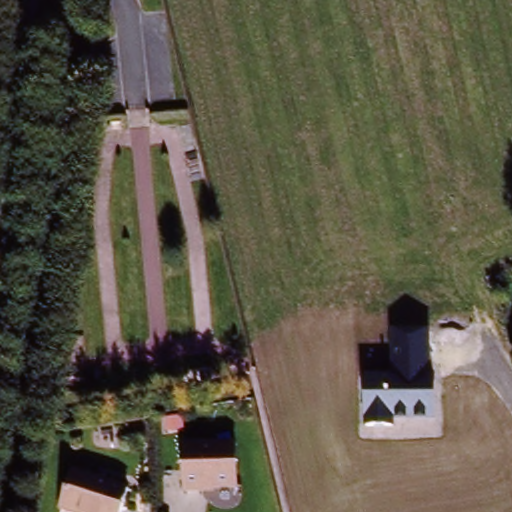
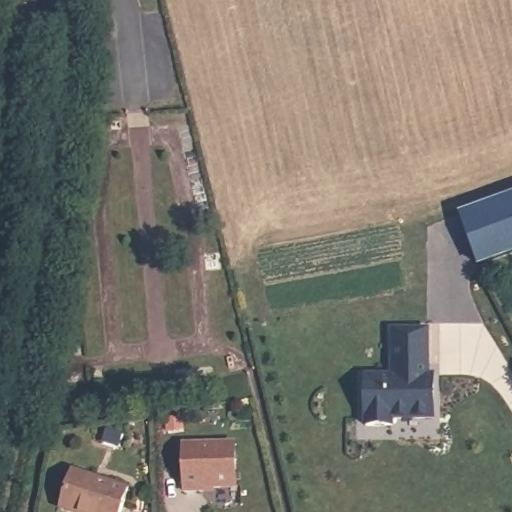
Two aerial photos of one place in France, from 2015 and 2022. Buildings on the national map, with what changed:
new [(512,258),(480,269),(459,214),(512,195),(512,258)]
unchanged [(393,374),(396,333),(432,334),(432,419),(395,417),(394,425),(365,425),(365,374),(393,374)]
unchanged [(234,447),(235,492),(200,492),(200,495),(182,496),(182,448),(234,447)]
unchanged [(125,492),(119,512),(57,512),(70,474),(125,492)]

